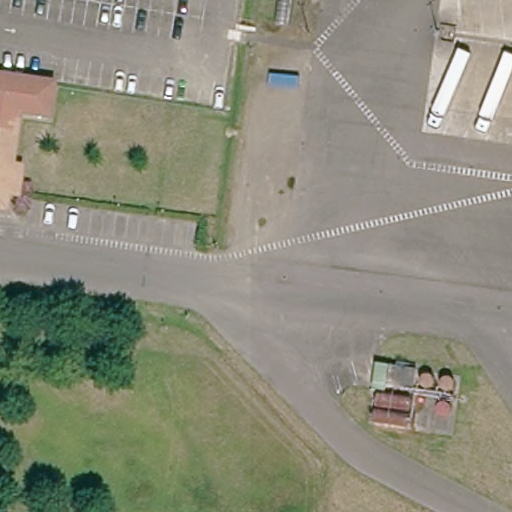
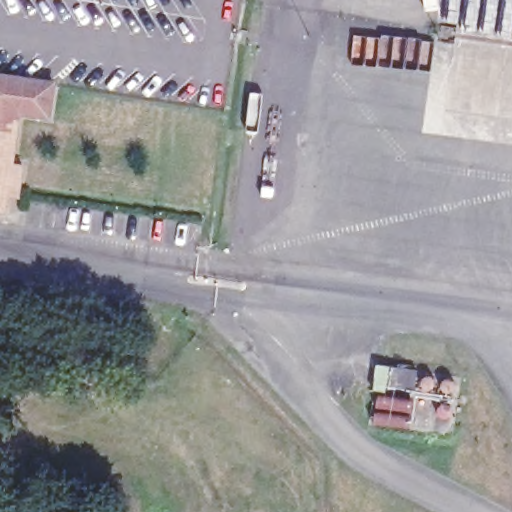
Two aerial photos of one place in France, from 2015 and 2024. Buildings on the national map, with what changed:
unchanged [(53,116),(24,115),(17,164),(26,164),(24,195),(15,195),(11,214),(0,212),(0,73),(57,81),(53,116)]
unchanged [(392,365),(420,369),(420,374),(458,379),(454,401),(414,399),(409,429),(375,426),(380,390),(375,390),(377,363),(392,365)]

